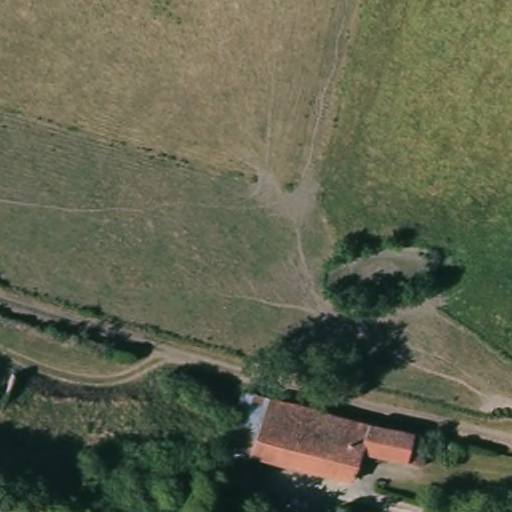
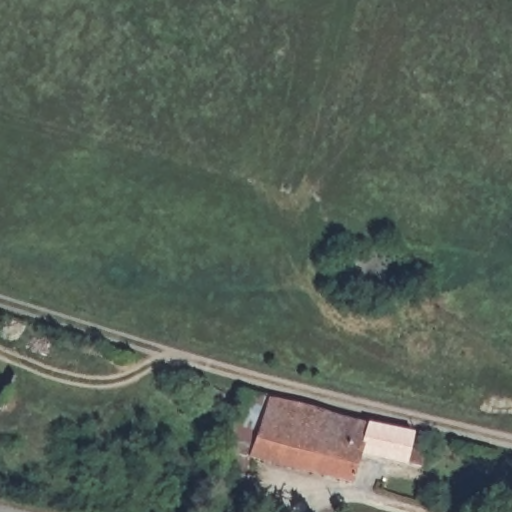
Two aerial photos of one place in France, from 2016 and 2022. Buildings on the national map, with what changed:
unchanged [(429,459),(426,473),(361,459),(352,488),(256,460),(250,476),(260,479),(252,499),(232,493),(235,486),(227,483),(232,469),(226,467),(246,391),(293,405),(330,416),(415,437),(410,455),(429,459)]

